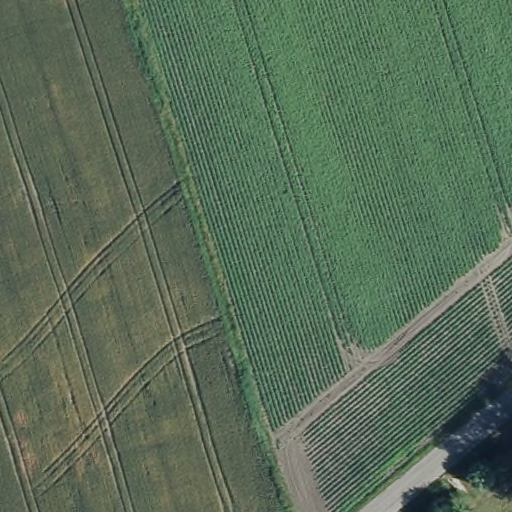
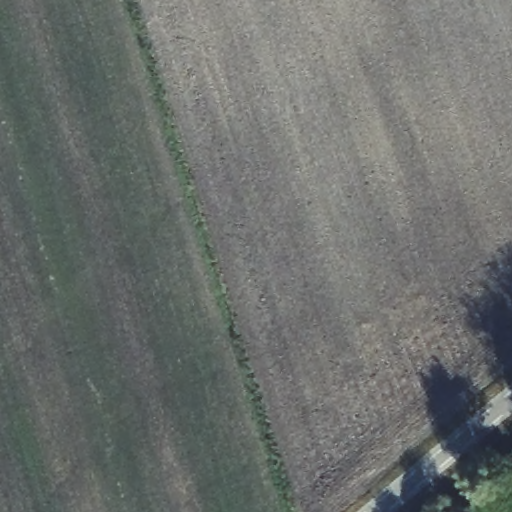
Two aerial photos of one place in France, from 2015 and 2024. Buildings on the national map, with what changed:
[]

